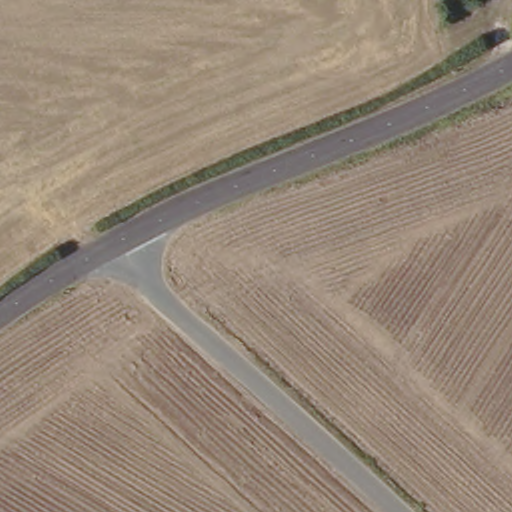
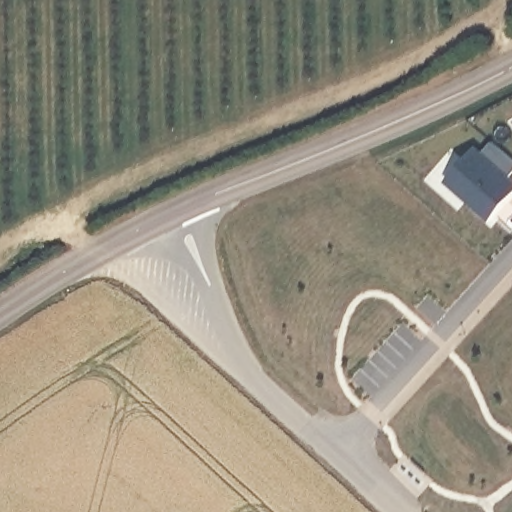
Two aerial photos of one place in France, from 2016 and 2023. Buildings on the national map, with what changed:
new [(485,152),(492,142),(512,159),(512,176),(512,177),(512,197),(490,222),(445,182),(477,146),(485,152)]

